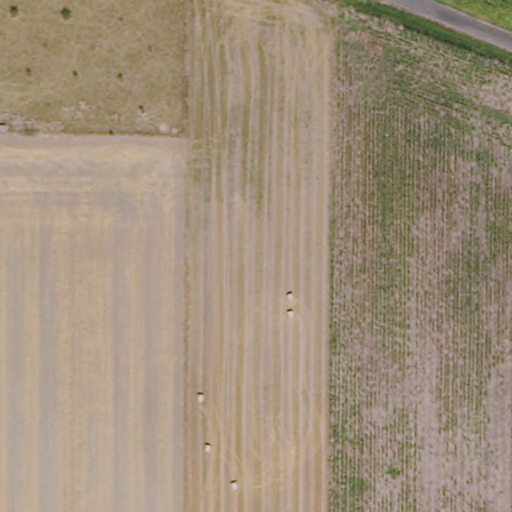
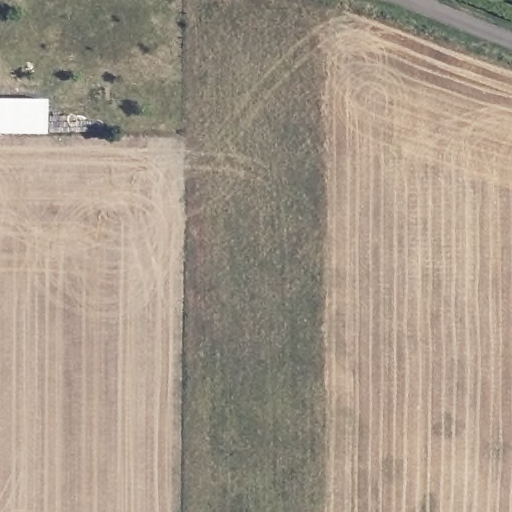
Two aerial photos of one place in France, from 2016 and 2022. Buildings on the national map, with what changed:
new [(46,133),(0,133),(0,100),(47,100),(46,133)]

